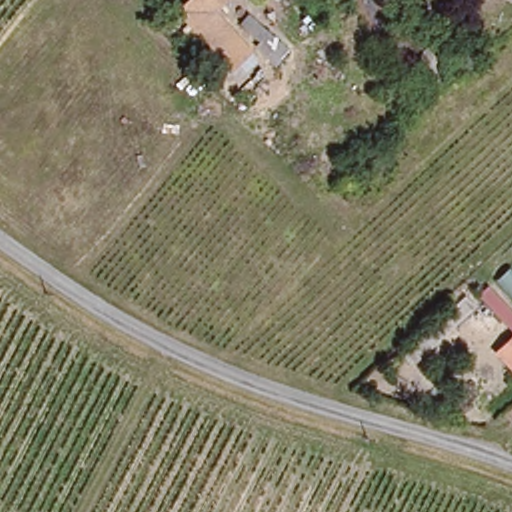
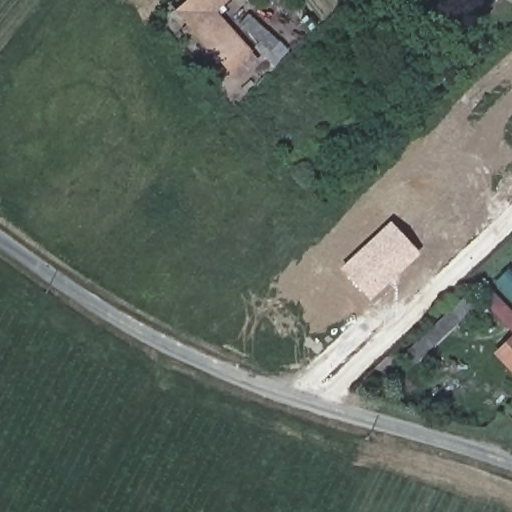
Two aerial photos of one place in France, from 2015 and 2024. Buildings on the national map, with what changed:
unchanged [(213,9),(250,51),(229,71),(173,10),(184,0),(223,0),(213,9)]
unchanged [(242,20),(251,13),(293,51),(280,64),(242,20)]
demolished [(419,53),(436,37),(451,53),(434,69),(419,53)]
new [(370,300),(340,267),(390,221),(420,253),(370,300)]
unchanged [(466,311),(410,362),(401,351),(456,299),(466,311)]
unchanged [(512,371),(493,351),(510,332),(512,333),(512,371)]

